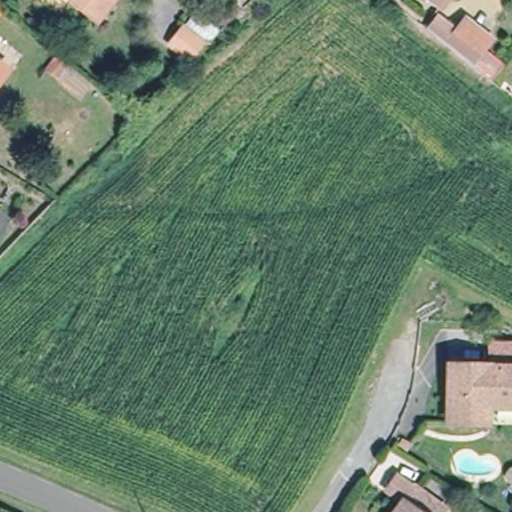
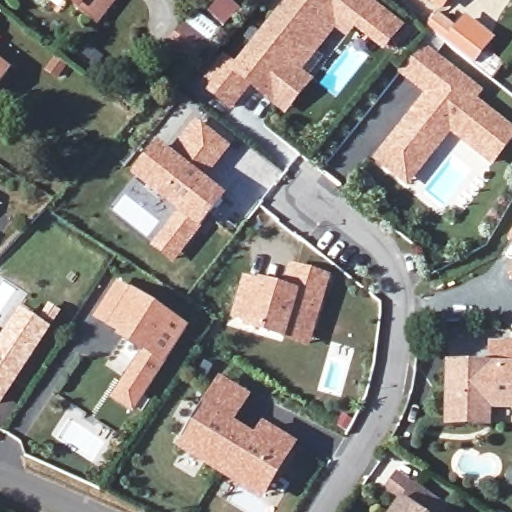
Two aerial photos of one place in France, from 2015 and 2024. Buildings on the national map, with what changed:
unchanged [(60,7),(51,0),(67,0),(60,7)]
unchanged [(98,18),(75,0),(112,0),(98,18)]
new [(235,62),(285,0),(372,0),(375,2),(345,39),(334,30),(303,71),(314,80),(285,116),(252,88),(231,110),(198,84),(223,53),(235,62)]
unchanged [(481,70),(463,55),(441,39),(424,25),(432,13),(449,26),(457,15),(481,32),(475,40),(495,55),(481,70)]
unchanged [(195,50),(176,35),(191,15),(212,32),(195,50)]
new [(409,188),(372,159),(425,92),(398,74),(422,42),(485,92),(478,101),(512,128),(512,143),(492,168),(451,133),(409,188)]
unchanged [(3,60),(0,64),(0,57),(3,60)]
unchanged [(58,60),(66,65),(58,75),(51,70),(58,60)]
new [(181,213),(135,176),(158,146),(170,155),(196,125),(226,149),(207,172),(229,189),(184,245),(172,260),(154,246),(166,231),(181,213)]
new [(512,232),(512,242),(507,240),(512,232)]
new [(512,270),(512,278),(509,276),(512,270)]
new [(285,338),(249,327),(251,322),(236,317),(247,281),(290,294),(297,271),(328,280),(314,325),(309,345),(285,338)]
new [(117,287),(184,331),(132,410),(113,397),(144,350),(96,318),(117,287)]
new [(19,312),(25,315),(46,329),(0,401),(0,344),(19,312)]
unchanged [(492,340),(508,340),(508,337),(512,337),(512,397),(485,396),(484,417),(451,416),(452,360),(491,360),(492,340)]
new [(205,411),(221,383),(248,400),(231,427),(257,443),(265,429),(283,440),(286,435),(295,440),(292,445),(294,446),(265,493),(241,477),(238,483),(205,462),(208,457),(182,441),(202,409),(205,411)]
unchanged [(446,503),(440,512),(395,512),(417,481),(446,503)]

